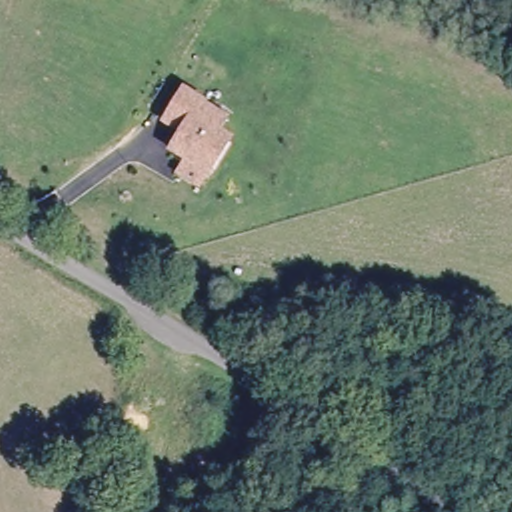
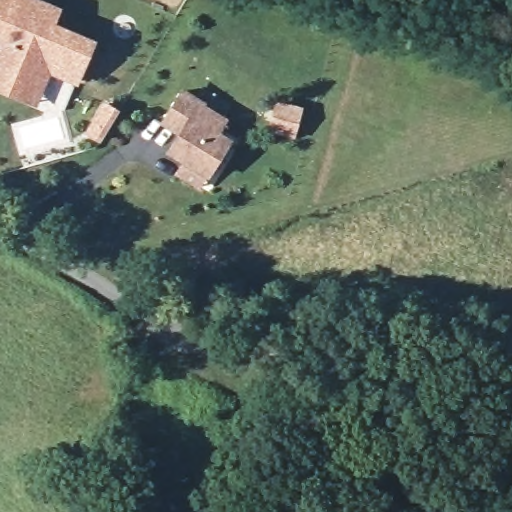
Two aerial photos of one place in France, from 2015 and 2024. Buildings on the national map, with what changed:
new [(63,6),(57,24),(96,40),(79,83),(52,72),(38,104),(0,89),(0,0),(49,0),(63,6)]
unchanged [(172,152),(182,134),(164,124),(183,92),(202,102),(200,105),(224,118),(216,132),(229,139),(210,174),(202,187),(180,174),(187,161),(172,152)]
new [(104,103),(117,111),(106,128),(100,139),(86,131),(93,120),(104,103)]

